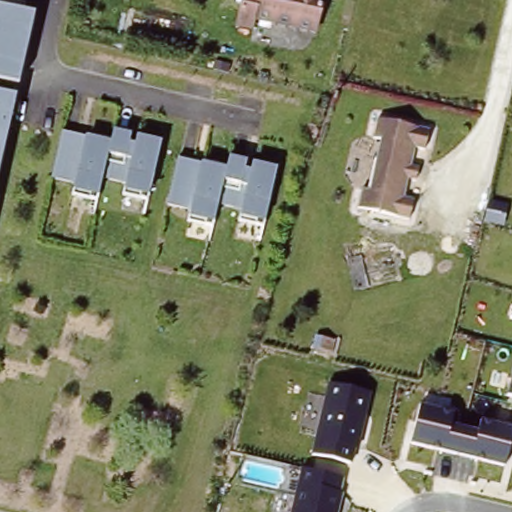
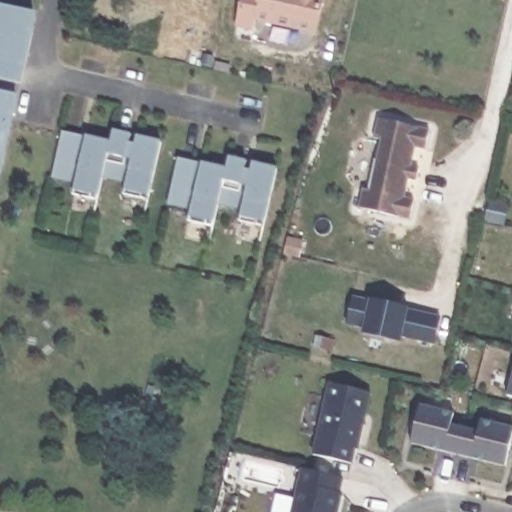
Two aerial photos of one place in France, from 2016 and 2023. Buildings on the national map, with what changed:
unchanged [(252,32),(242,30),(249,0),(320,0),(312,36),(256,21),(252,32)]
unchanged [(20,80),(0,76),(0,1),(37,10),(20,80)]
unchanged [(0,169),(0,88),(18,92),(0,169)]
unchanged [(362,189),(369,190),(380,139),(374,137),(378,120),(430,130),(427,150),(419,148),(407,197),(415,199),(410,221),(375,214),(357,210),(362,189)]
unchanged [(112,135),(104,170),(98,192),(74,187),(76,175),(52,170),(63,124),(112,135)]
unchanged [(162,135),(149,192),(124,186),(127,175),(104,170),(112,135),(114,124),(162,135)]
unchanged [(227,166),(220,201),(214,224),(190,219),(192,206),(169,201),(179,155),(227,166)]
unchanged [(279,166),(265,224),(240,218),(243,206),(220,201),(227,166),(230,155),(279,166)]
new [(402,336),(400,341),(360,332),(362,325),(346,323),(354,294),(370,297),(410,308),(440,316),(433,344),(402,336)]
unchanged [(512,366),(512,396),(505,393),(512,366)]
unchanged [(309,452),(325,380),(370,390),(352,462),(309,452)]
unchanged [(417,402),(452,410),(449,422),(477,428),(480,418),(512,426),(512,435),(505,465),(407,440),(417,402)]
unchanged [(299,465),(344,476),(336,512),(288,512),(299,465)]

